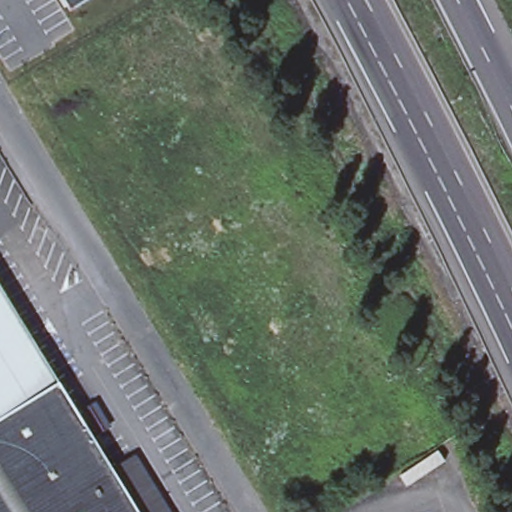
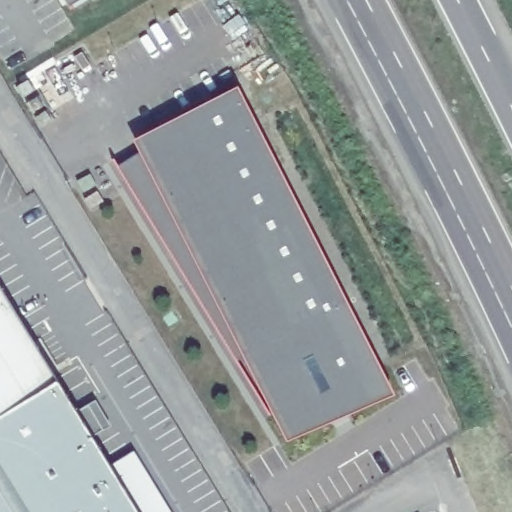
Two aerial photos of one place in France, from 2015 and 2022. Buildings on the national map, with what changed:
unchanged [(60,0),(85,0),(67,11),(60,0)]
new [(140,155),(134,141),(240,88),(396,397),(289,442),(274,415),(267,418),(118,167),(140,155)]
unchanged [(0,285),(95,441),(137,512),(0,512),(0,285)]

